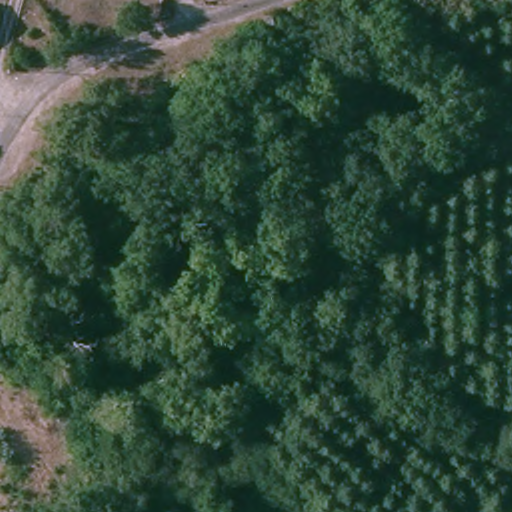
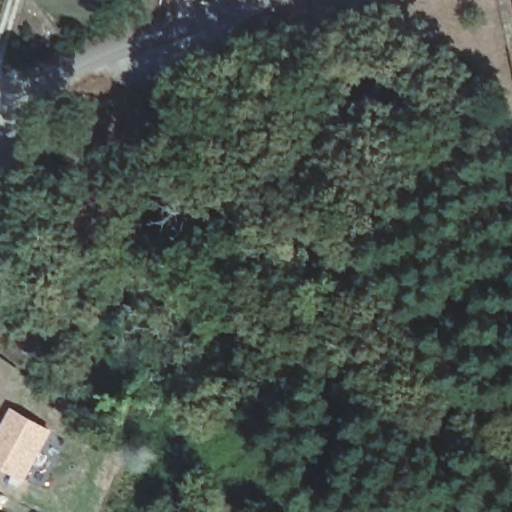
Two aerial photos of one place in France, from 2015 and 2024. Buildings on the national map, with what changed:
demolished [(35,372),(32,394),(14,392),(17,370),(35,372)]
new [(12,407),(54,431),(24,483),(0,469),(0,429),(12,407)]
demolished [(117,458),(92,473),(85,461),(109,446),(117,458)]
new [(3,495),(0,501),(0,493),(3,495)]

